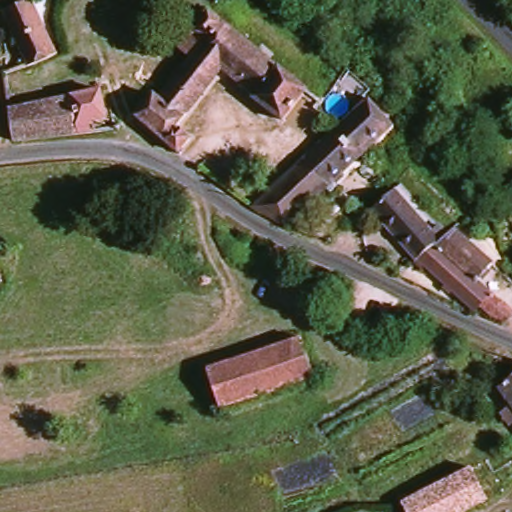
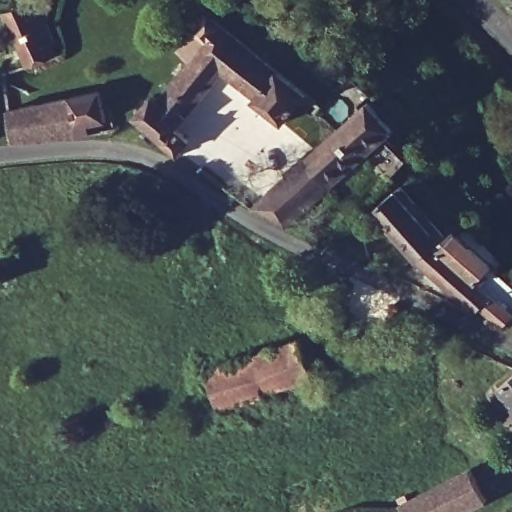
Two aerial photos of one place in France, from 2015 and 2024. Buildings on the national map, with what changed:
unchanged [(12,15),(37,4),(62,58),(29,71),(10,17),(12,15)]
unchanged [(307,93),(282,123),(252,98),(254,96),(221,71),(176,129),(189,143),(179,155),(142,119),(132,123),(155,95),(160,99),(192,59),(180,49),(209,14),(307,93)]
unchanged [(114,132),(19,142),(9,75),(27,72),(34,110),(106,93),(110,110),(115,109),(120,130),(114,132)]
unchanged [(309,163),(345,128),(372,103),(395,128),(330,189),(309,163)]
unchanged [(0,143),(0,113),(2,143),(0,143)]
unchanged [(330,189),(290,228),(273,219),(260,210),(309,163),(330,189)]
unchanged [(374,212),(396,191),(441,239),(419,259),(417,257),(374,212)]
unchanged [(493,296),(477,313),(473,311),(419,259),(441,239),(452,229),(490,267),(477,281),(493,296)]
unchanged [(0,275),(5,291),(0,293),(0,275)]
unchanged [(305,341),(319,377),(220,411),(207,373),(270,353),(305,341)]
unchanged [(500,395),(512,387),(512,411),(500,395)]
unchanged [(485,466),(502,497),(475,512),(402,512),(402,510),(485,466)]

